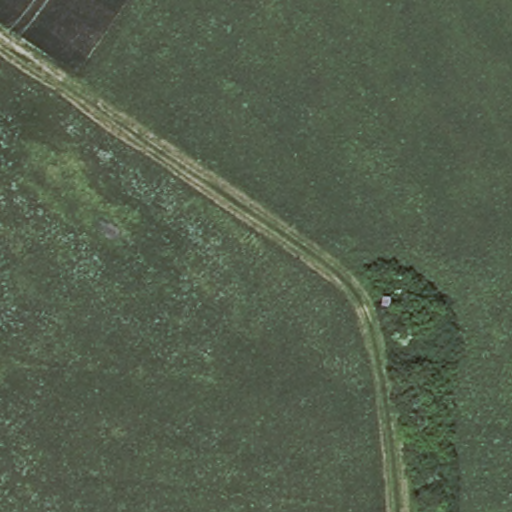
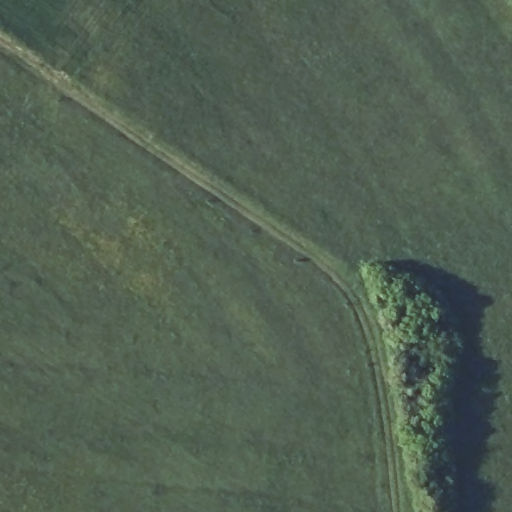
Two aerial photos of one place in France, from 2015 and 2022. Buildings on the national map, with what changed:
[]

